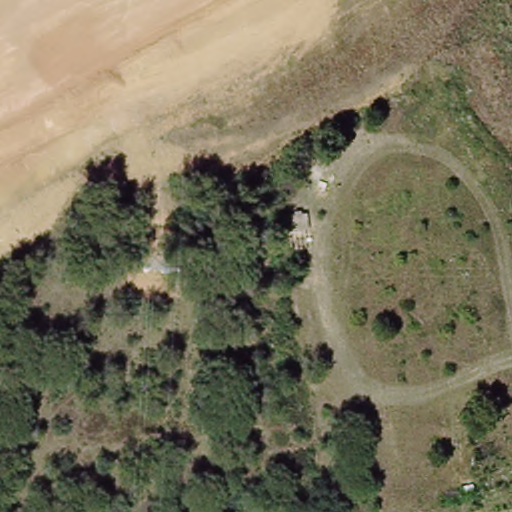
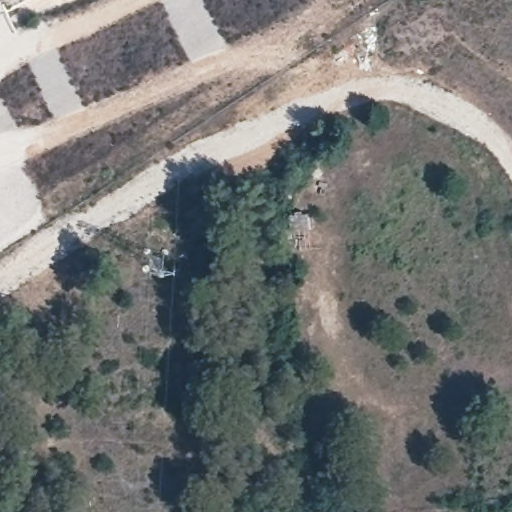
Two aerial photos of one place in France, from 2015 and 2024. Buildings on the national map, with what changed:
unchanged [(310,218),(312,241),(290,241),(290,220),(310,218)]

